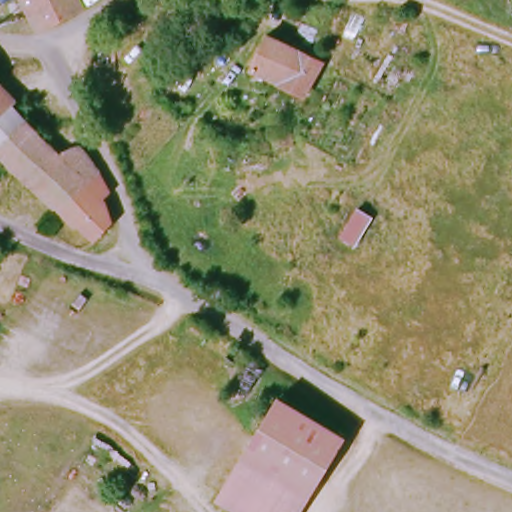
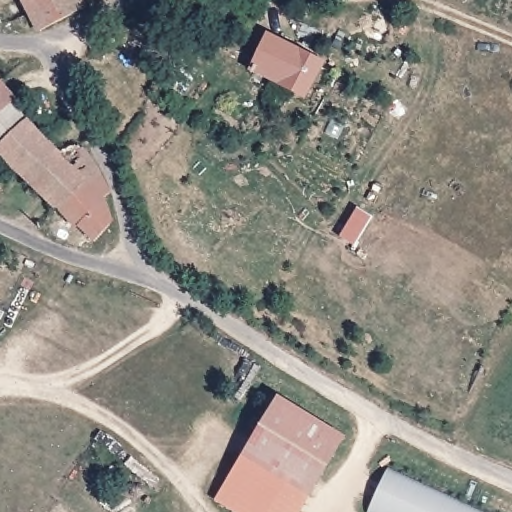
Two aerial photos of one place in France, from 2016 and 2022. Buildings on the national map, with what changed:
unchanged [(20,0),(26,0),(22,2),(20,0)]
unchanged [(22,2),(26,0),(74,0),(79,9),(49,24),(35,29),(22,2)]
unchanged [(299,51),(283,88),(249,73),(266,37),(299,51)]
unchanged [(4,107),(0,110),(0,103),(4,107)]
unchanged [(4,107),(13,116),(19,124),(0,138),(0,110),(4,107)]
unchanged [(19,124),(46,157),(49,159),(55,155),(61,153),(64,152),(72,152),(90,174),(47,208),(0,164),(0,138),(19,124)]
unchanged [(90,174),(99,193),(91,201),(98,216),(99,220),(99,225),(98,228),(82,242),(47,208),(90,174)]
unchanged [(288,374),(354,412),(296,512),(287,512),(229,478),(288,374)]
new [(483,512),(367,512),(387,467),(483,512)]
unchanged [(233,512),(216,502),(229,478),(287,512),(233,512)]

